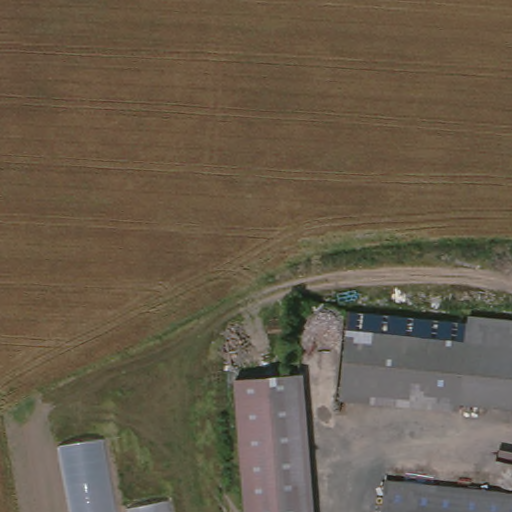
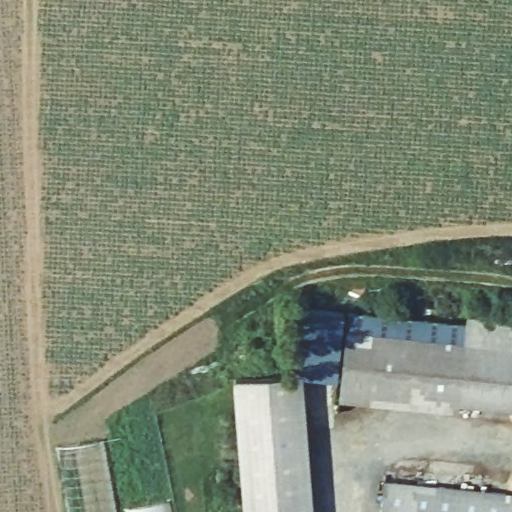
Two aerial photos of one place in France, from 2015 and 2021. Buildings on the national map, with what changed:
unchanged [(512,312),(512,402),(333,392),(340,323),(458,330),(461,311),(463,311),(512,312)]
unchanged [(304,377),(315,512),(243,512),(232,383),(304,377)]
unchanged [(105,439),(117,511),(174,500),(176,512),(69,512),(57,447),(105,439)]
unchanged [(375,512),(377,486),(512,496),(512,512),(375,512)]

